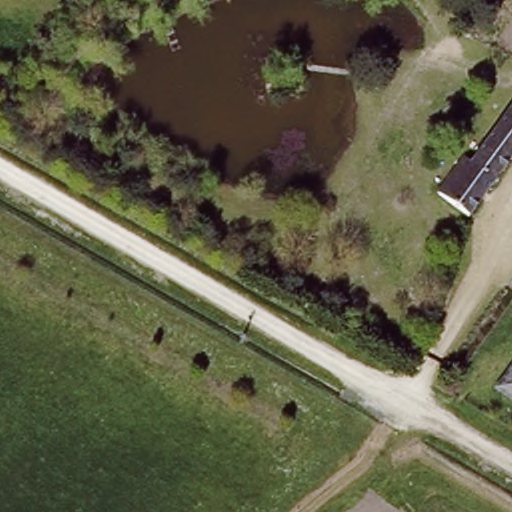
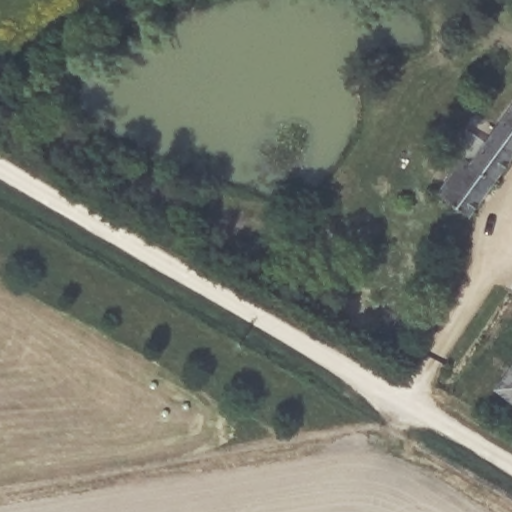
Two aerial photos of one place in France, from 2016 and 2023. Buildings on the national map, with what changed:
unchanged [(477,163),(512,110),(512,159),(471,219),(437,196),(465,156),(477,163)]
unchanged [(510,293),(512,289),(512,295),(510,293)]
unchanged [(485,388),(501,362),(512,369),(512,405),(485,388)]

